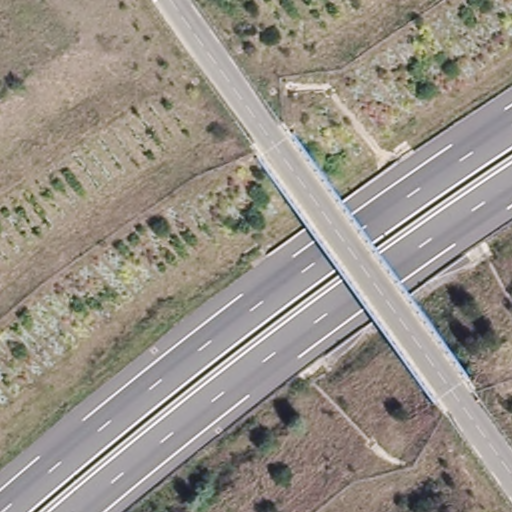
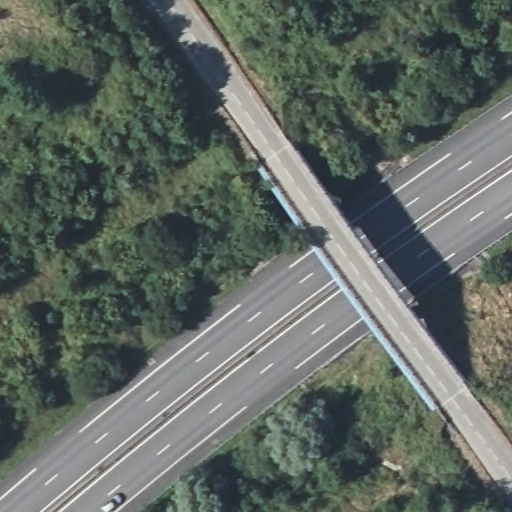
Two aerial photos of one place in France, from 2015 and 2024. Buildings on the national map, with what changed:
[]

